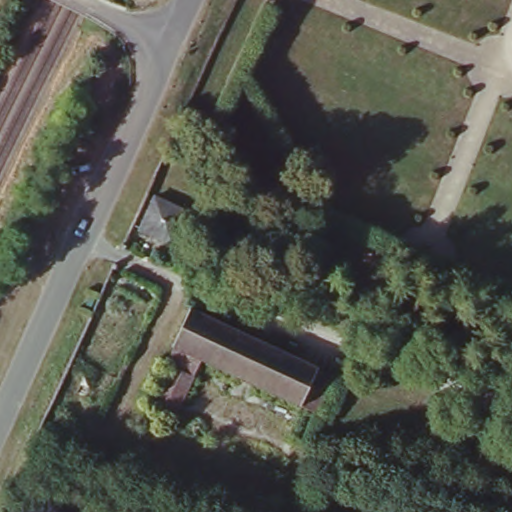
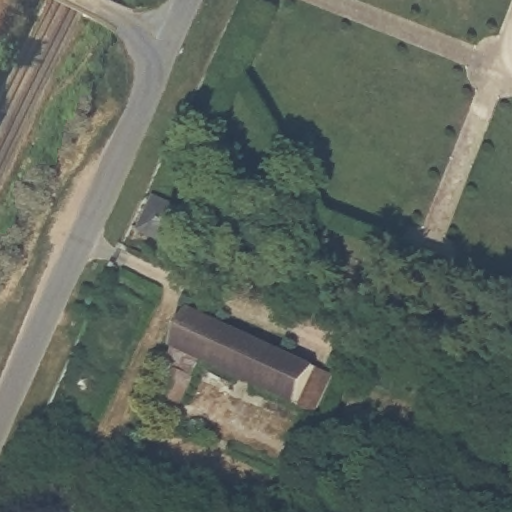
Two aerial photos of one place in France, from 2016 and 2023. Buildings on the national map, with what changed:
unchanged [(159,200),(190,214),(174,246),(142,232),(159,200)]
unchanged [(95,310),(91,321),(84,318),(88,308),(95,310)]
unchanged [(209,360),(202,375),(174,361),(200,314),(340,386),(323,415),(312,410),(209,360)]

